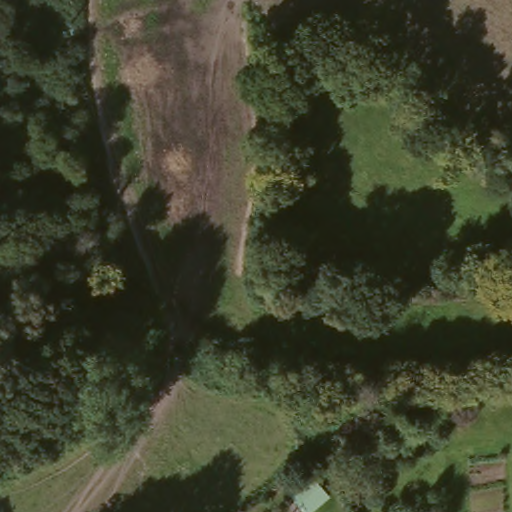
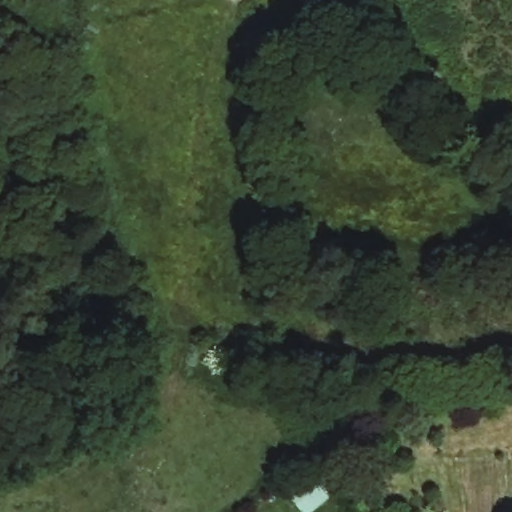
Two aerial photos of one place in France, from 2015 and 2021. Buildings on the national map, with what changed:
[]

